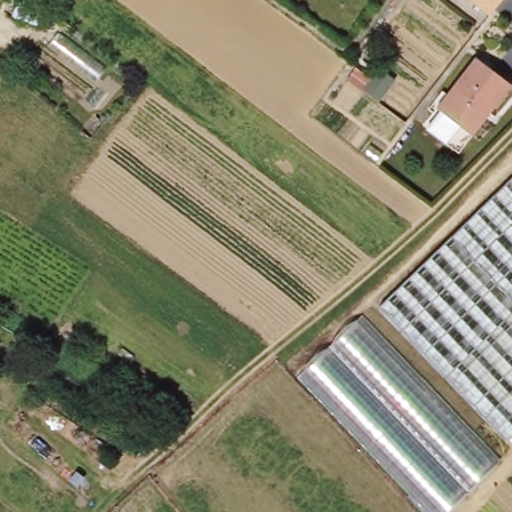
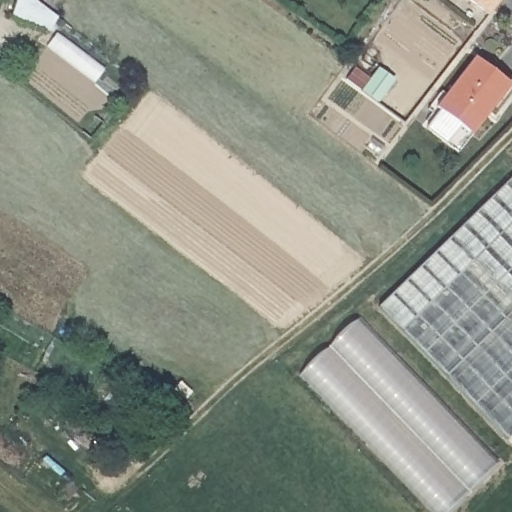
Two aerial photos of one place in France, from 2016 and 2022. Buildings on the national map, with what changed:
unchanged [(474,0),(505,0),(493,15),(474,0)]
unchanged [(512,73),(512,90),(481,129),(467,146),(435,121),(446,107),(442,105),(444,100),(484,51),(512,73)]
unchanged [(385,73),(402,85),(387,105),(378,99),(370,93),(385,73)]
unchanged [(499,438),(376,307),(512,185),(512,427),(499,438)]
unchanged [(498,465),(451,512),(427,512),(299,377),(356,321),(498,465)]

